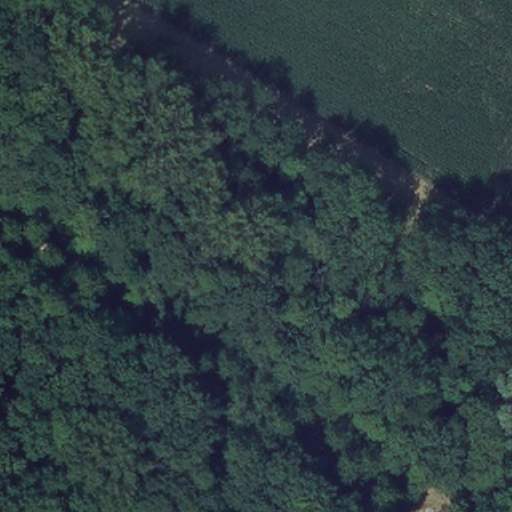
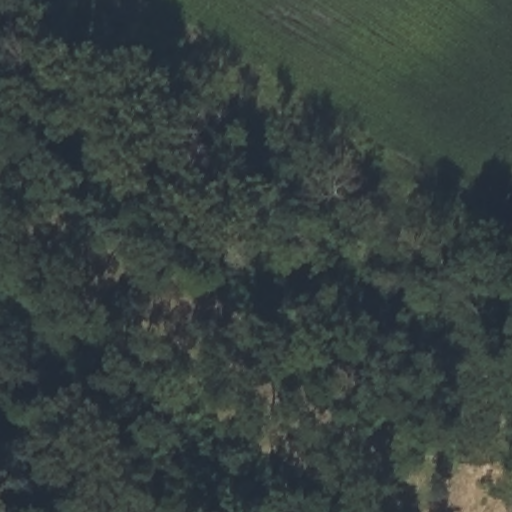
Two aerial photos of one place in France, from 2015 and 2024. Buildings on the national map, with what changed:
[]

